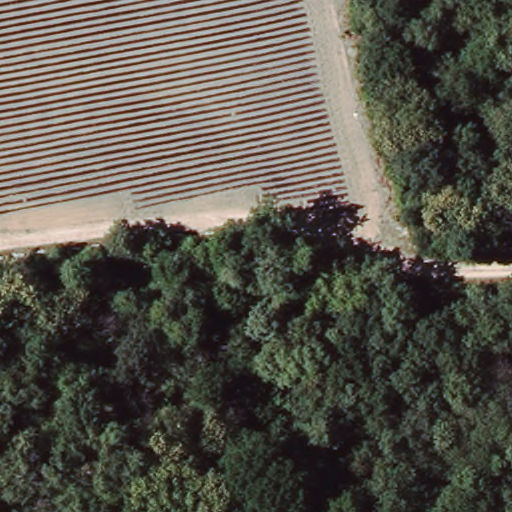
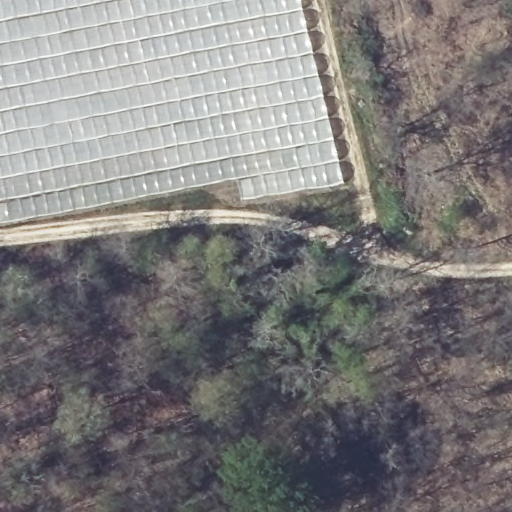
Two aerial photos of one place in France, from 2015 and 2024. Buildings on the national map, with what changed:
demolished [(327,219),(277,202),(180,202),(32,219),(0,221),(0,0),(313,0),(366,221),(327,219)]
new [(343,182),(242,200),(237,179),(190,187),(75,211),(0,224),(0,0),(300,0),(343,182)]

